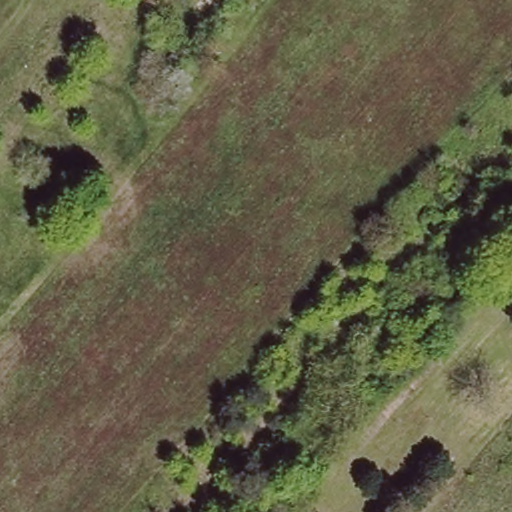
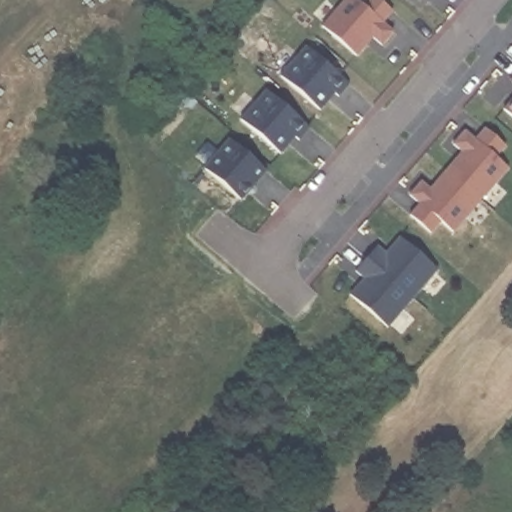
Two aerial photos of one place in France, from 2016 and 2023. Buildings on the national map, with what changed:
new [(364,0),(365,1),(366,0),(388,0),(396,7),(386,19),(396,27),(384,41),(376,33),(359,51),(324,21),(343,0),(364,0)]
new [(308,43),(351,80),(341,93),(337,89),(322,106),(282,72),(308,43)]
new [(267,86),(311,124),(301,136),(297,133),(283,150),(242,116),(267,86)]
new [(512,109),(507,105),(512,99),(512,109)]
new [(422,200),(412,191),(424,178),(432,185),(465,148),(456,140),(468,126),(478,135),(488,124),(509,141),(499,153),(512,164),(456,228),(443,217),(433,229),(412,211),(422,200)]
new [(230,136),(268,167),(242,197),(204,165),(230,136)]
new [(366,275),(357,267),(379,242),(386,249),(402,233),(440,266),(389,324),(351,291),(366,275)]

